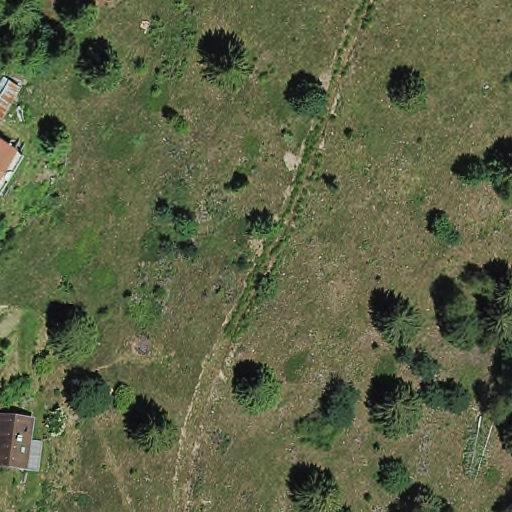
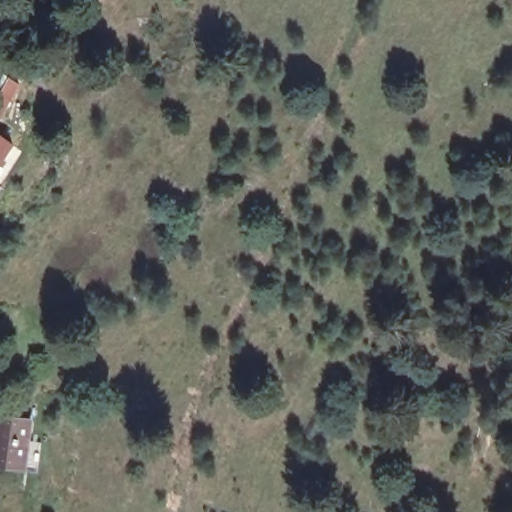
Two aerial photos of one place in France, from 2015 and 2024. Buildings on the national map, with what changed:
unchanged [(7,101),(0,113),(0,97),(7,101)]
unchanged [(0,177),(0,141),(6,145),(16,151),(0,177)]
unchanged [(4,412),(16,413),(15,419),(3,417),(4,412)]
unchanged [(3,422),(23,426),(24,423),(35,425),(28,468),(0,464),(0,437),(3,422)]

